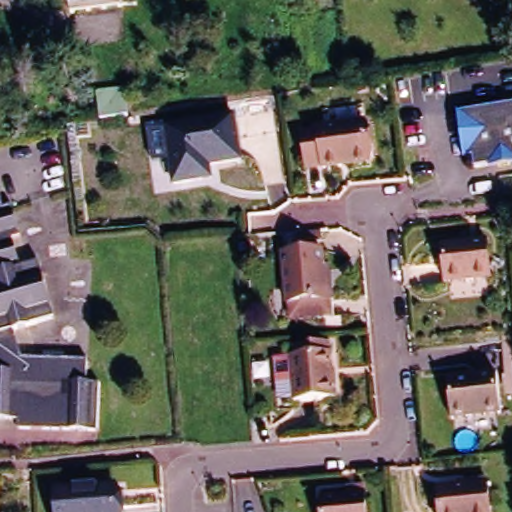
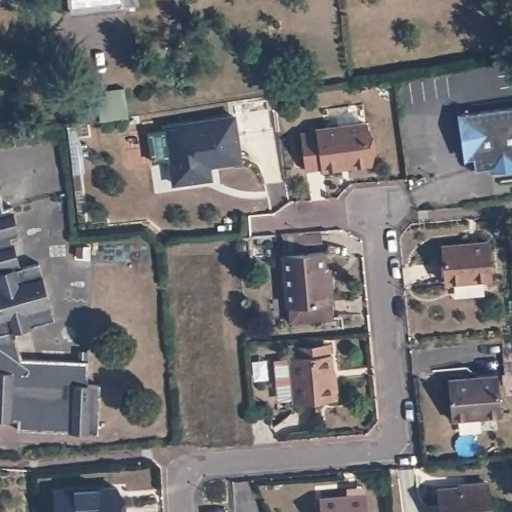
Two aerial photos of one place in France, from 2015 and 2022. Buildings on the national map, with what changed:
unchanged [(68,0),(137,0),(137,5),(122,7),(70,14),(68,0)]
unchanged [(512,133),(485,138),(475,139),(459,141),(455,114),(512,106),(512,133)]
unchanged [(180,180),(174,181),(168,145),(165,124),(172,123),(234,114),(237,135),(241,157),(210,162),(212,174),(202,176),(180,180)]
unchanged [(372,161),(343,165),(344,169),(325,171),(325,167),(309,169),(305,135),(320,132),(320,130),(368,123),(372,161)]
unchanged [(485,138),(512,133),(512,169),(490,172),(489,168),(472,170),(471,158),(461,160),(459,141),(475,139),(485,138)]
unchanged [(5,204),(12,202),(23,236),(15,238),(23,267),(42,261),(58,318),(16,329),(24,359),(90,364),(88,386),(102,389),(98,435),(20,429),(21,419),(0,417),(0,189),(5,204)]
unchanged [(315,232),(316,240),(295,242),(294,234),(315,232)]
unchanged [(440,246),(485,241),(489,278),(444,282),(440,246)]
unchanged [(284,311),(277,246),(317,242),(318,259),(324,258),(325,271),(330,307),(284,311)]
unchanged [(334,373),(335,386),(336,404),(295,407),(291,362),(290,352),(306,351),(329,349),(330,359),(330,374),(334,373)]
unchanged [(448,378),(498,373),(502,414),(452,419),(448,378)]
unchanged [(458,485),(468,485),(488,483),(490,512),(441,512),(439,491),(458,490),(458,485)]
unchanged [(107,486),(110,512),(49,512),(46,494),(107,486)]
unchanged [(343,495),(359,494),(360,501),(360,512),(316,512),(315,505),(343,502),(343,495)]

